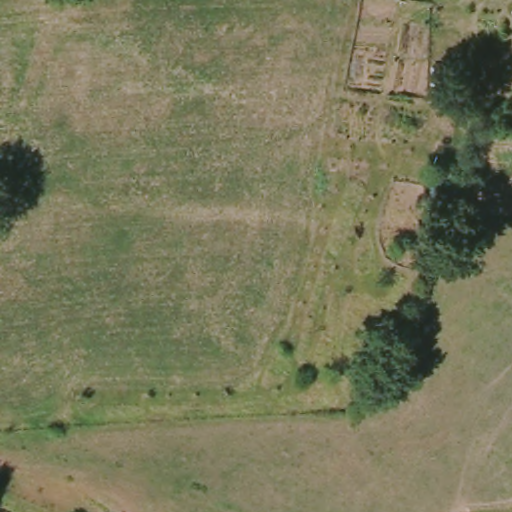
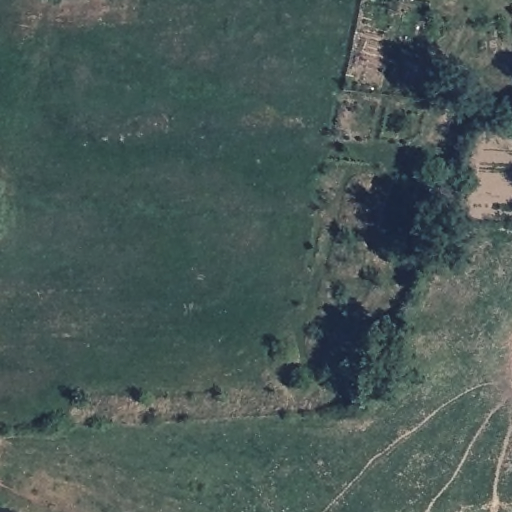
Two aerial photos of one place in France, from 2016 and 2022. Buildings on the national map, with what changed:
unchanged [(512,29),(512,48),(508,48),(507,29),(512,29)]

